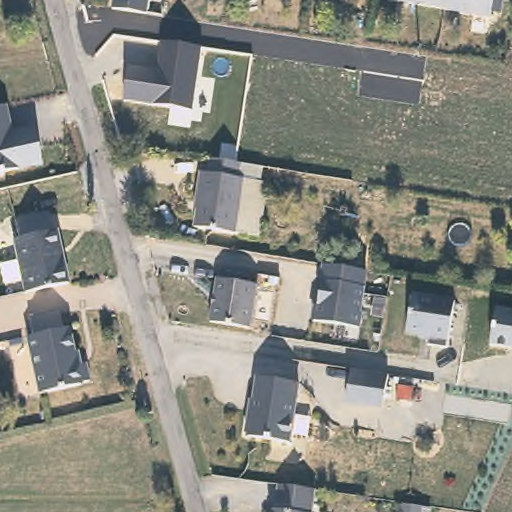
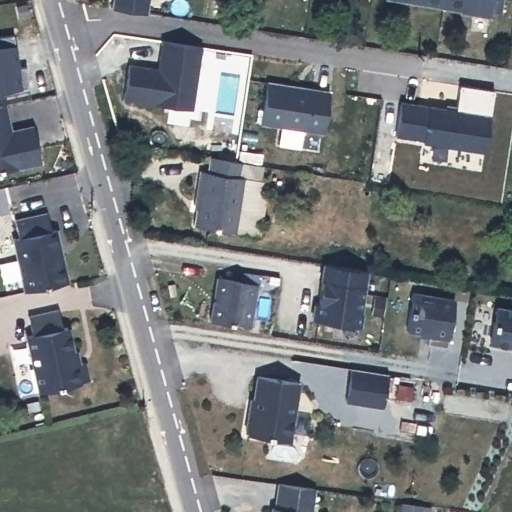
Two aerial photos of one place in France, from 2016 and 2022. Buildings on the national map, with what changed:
unchanged [(146,14),(111,7),(113,0),(149,0),(146,14)]
unchanged [(440,6),(405,0),(441,0),(440,6)]
unchanged [(497,12),(488,10),(487,16),(456,11),(456,10),(440,6),(441,0),(499,0),(497,12)]
new [(15,68),(23,66),(26,87),(0,92),(0,36),(9,35),(15,68)]
unchanged [(131,66),(160,69),(165,44),(200,46),(192,110),(124,100),(131,66)]
new [(266,84),(328,92),(322,135),(260,126),(266,84)]
new [(402,102),(456,110),(460,85),(496,90),(486,152),(423,144),(424,141),(397,137),(402,102)]
unchanged [(34,129),(43,165),(0,176),(0,107),(4,106),(9,135),(34,129)]
unchanged [(236,160),(234,174),(239,174),(231,229),(189,222),(192,199),(190,199),(195,167),(202,169),(204,155),(236,160)]
unchanged [(263,165),(261,183),(271,184),(264,233),(231,229),(239,174),(234,174),(236,160),(263,165)]
unchanged [(48,231),(53,230),(66,285),(24,295),(11,241),(16,240),(11,223),(44,215),(48,231)]
unchanged [(329,240),(376,247),(370,271),(324,265),(329,240)]
unchanged [(370,271),(361,328),(313,321),(324,265),(370,271)]
unchanged [(257,285),(250,327),(211,321),(218,278),(257,285)]
unchanged [(454,300),(447,347),(427,344),(428,335),(406,331),(412,294),(454,300)]
unchanged [(496,308),(512,311),(512,350),(491,347),(496,308)]
unchanged [(56,330),(61,328),(69,366),(79,364),(83,381),(73,384),(74,385),(34,394),(21,337),(26,336),(23,318),(52,311),(56,330)]
unchanged [(350,369),(382,374),(387,375),(382,407),(345,401),(350,369)]
unchanged [(297,383),(287,442),(247,435),(247,432),(244,431),(248,409),(251,410),(257,376),(297,383)]
unchanged [(310,512),(268,512),(269,509),(272,510),(277,483),(314,489),(310,512)]

